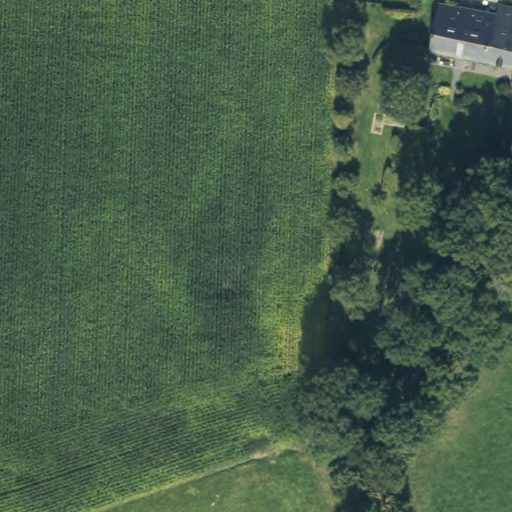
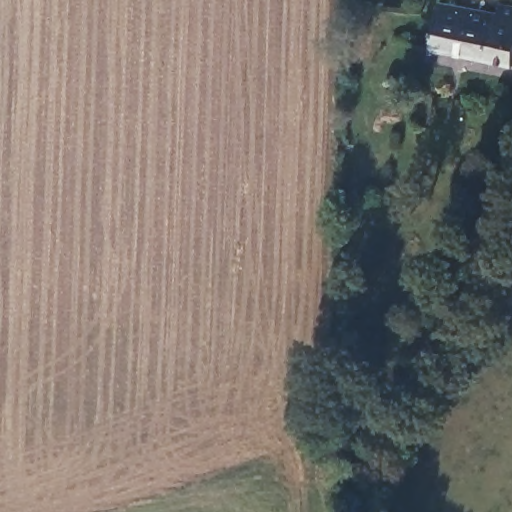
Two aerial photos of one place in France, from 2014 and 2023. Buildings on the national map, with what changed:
unchanged [(512,61),(510,69),(430,53),(440,5),(499,17),(500,11),(512,14),(512,61)]

